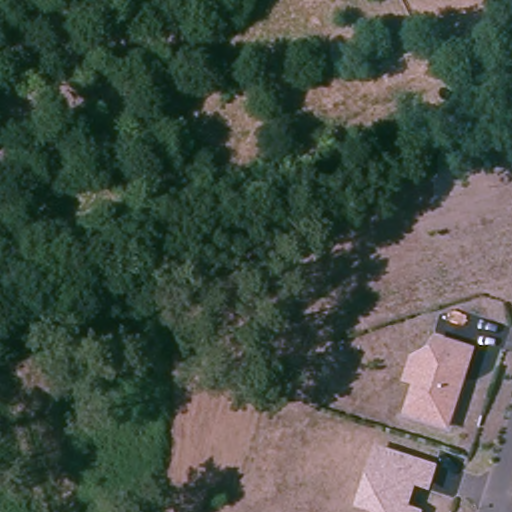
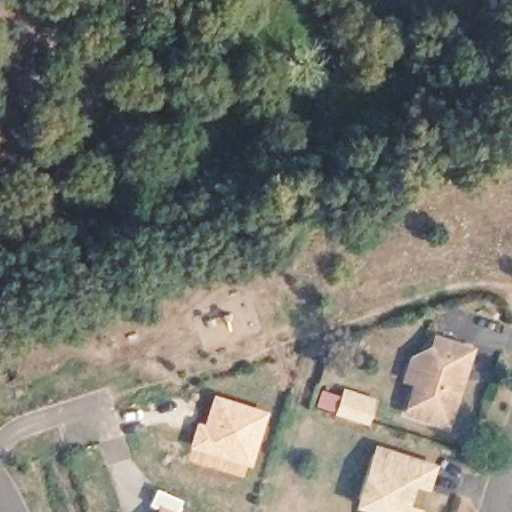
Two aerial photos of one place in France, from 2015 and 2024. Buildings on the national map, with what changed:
unchanged [(436,342),(473,355),(467,370),(463,383),(448,431),(407,417),(417,387),(407,384),(414,362),(427,356),(432,357),(436,342)]
unchanged [(345,390),(375,399),(374,404),(368,423),(338,414),(344,395),(345,390)]
new [(195,421),(202,422),(212,393),(269,411),(250,468),(244,479),(185,460),(188,448),(195,421)]
unchanged [(405,507),(420,512),(377,512),(377,511),(359,505),(377,447),(388,451),(435,466),(429,482),(415,478),(405,507)]
new [(158,492),(183,504),(179,512),(159,512),(150,508),(158,492)]

